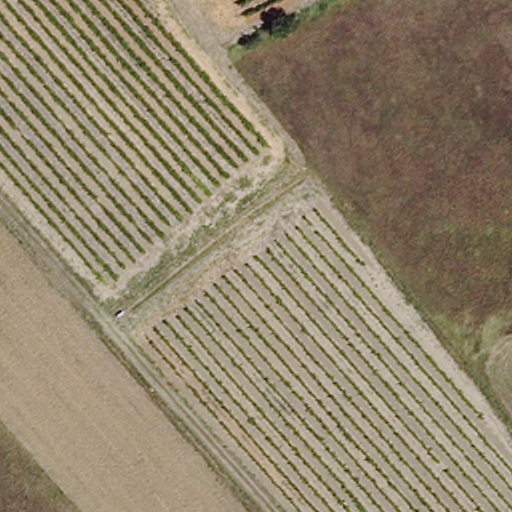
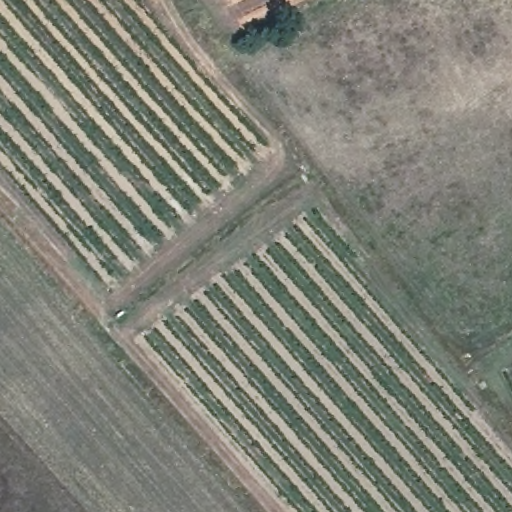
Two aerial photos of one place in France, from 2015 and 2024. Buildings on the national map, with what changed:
[]

